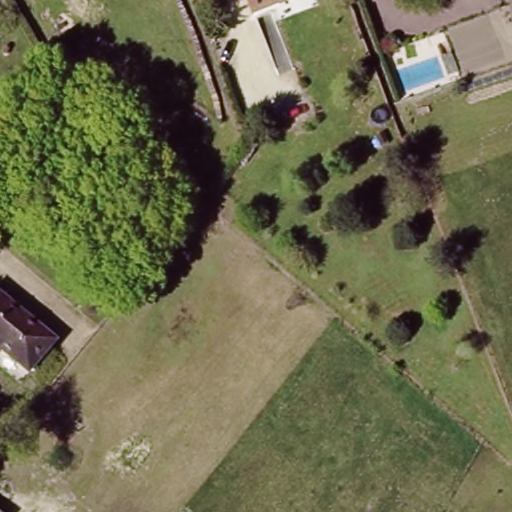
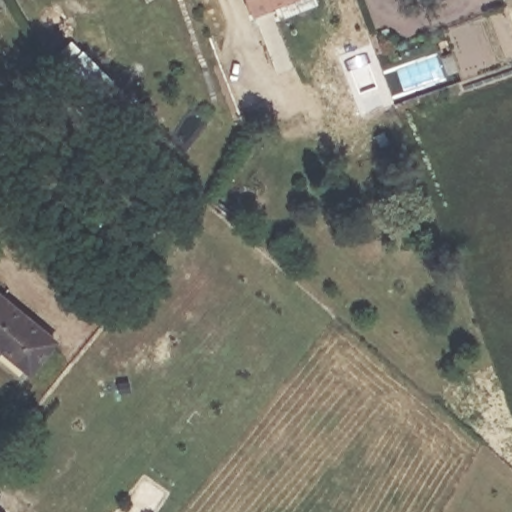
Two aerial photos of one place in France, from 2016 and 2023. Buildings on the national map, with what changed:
unchanged [(246,0),(294,0),(252,16),(246,0)]
unchanged [(31,372),(0,345),(0,293),(57,342),(31,372)]
unchanged [(0,511),(2,512),(0,512),(0,511)]

